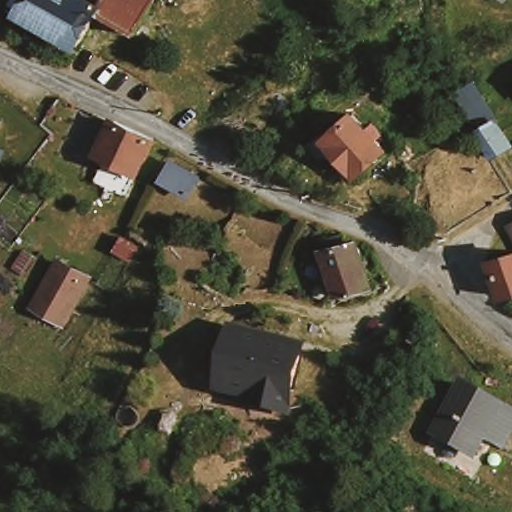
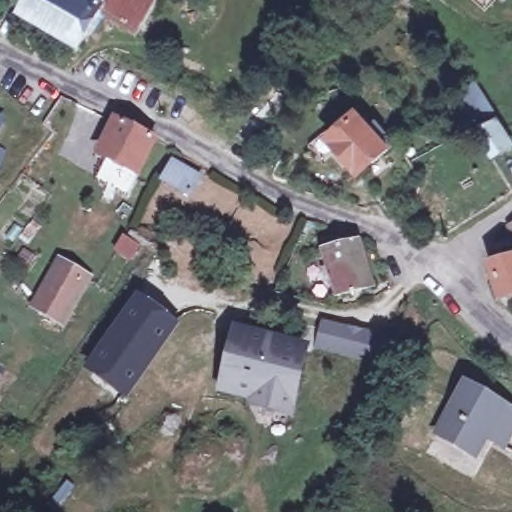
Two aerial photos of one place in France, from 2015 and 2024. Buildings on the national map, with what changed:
unchanged [(96,5),(75,40),(15,8),(20,0),(148,0),(133,26),(96,5)]
unchanged [(393,148),(368,171),(334,134),(359,110),(393,148)]
unchanged [(160,132),(131,189),(103,173),(114,150),(106,146),(122,112),(160,132)]
unchanged [(481,133),(500,125),(510,152),(492,159),(481,133)]
unchanged [(1,141),(0,145),(0,141),(1,141)]
unchanged [(190,173),(180,190),(153,175),(163,157),(190,173)]
unchanged [(377,294),(345,302),(331,249),(330,237),(348,232),(351,244),(365,240),(377,294)]
unchanged [(495,258),(512,254),(512,294),(508,295),(495,258)]
unchanged [(90,280),(61,318),(34,299),(62,260),(90,280)]
new [(136,291),(180,322),(125,399),(83,369),(136,291)]
new [(379,333),(373,362),(315,350),(323,320),(379,333)]
unchanged [(300,348),(286,408),(255,403),(257,391),(230,385),(240,337),(300,348)]
unchanged [(475,453),(435,433),(460,383),(512,411),(512,422),(507,430),(500,444),(484,435),(475,453)]

